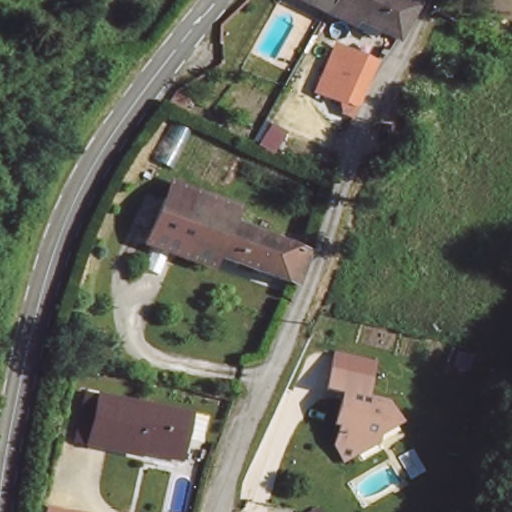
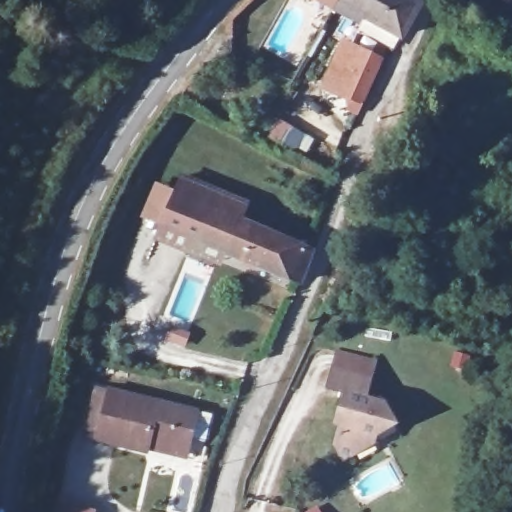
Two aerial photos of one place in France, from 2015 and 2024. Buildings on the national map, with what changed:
unchanged [(339,3),(333,0),(340,0),(339,3)]
unchanged [(405,30),(351,0),(422,0),(405,30)]
unchanged [(344,34),(382,53),(359,104),(323,85),(344,34)]
unchanged [(158,225),(139,216),(151,186),(170,193),(187,200),(188,198),(193,187),(232,204),(226,216),(303,249),(293,279),(216,248),(210,263),(152,240),(158,225)]
unchanged [(333,439),(339,425),(335,418),(342,390),(327,384),(332,364),(368,375),(368,392),(384,399),(395,417),(356,456),(342,458),(333,439)]
unchanged [(146,450),(113,442),(96,438),(86,436),(81,435),(92,383),(99,385),(197,407),(188,446),(185,458),(146,450)]

